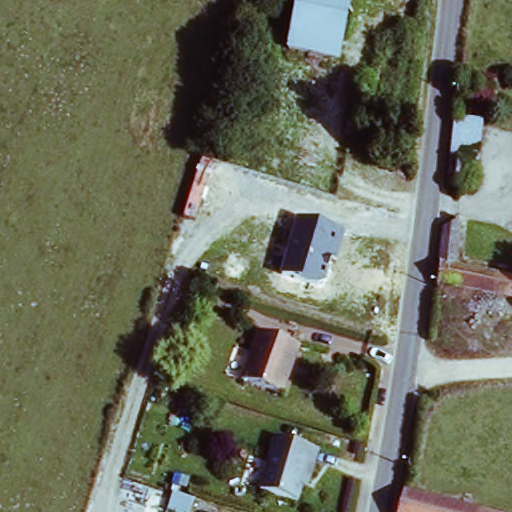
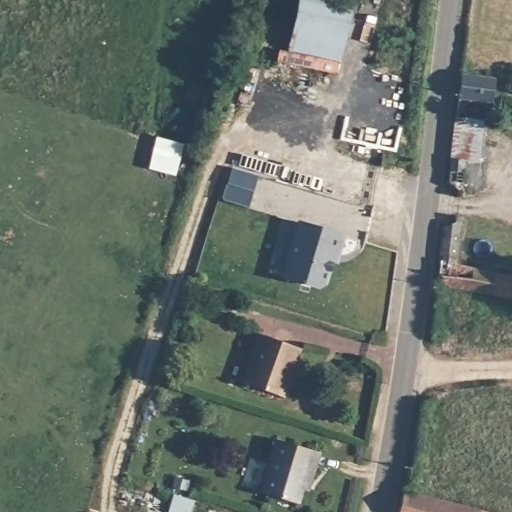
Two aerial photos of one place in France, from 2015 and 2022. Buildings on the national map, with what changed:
unchanged [(347,0),(338,56),(288,50),(295,0),(347,0)]
unchanged [(453,116),(482,121),(479,166),(449,160),(453,116)]
new [(261,176),(251,209),(223,201),(231,168),(261,176)]
unchanged [(464,205),(454,261),(512,277),(512,302),(434,284),(448,202),(464,205)]
unchanged [(344,233),(338,263),(332,262),(324,289),(282,277),(296,222),(344,233)]
unchanged [(244,384),(258,338),(299,350),(286,396),(244,384)]
unchanged [(303,505),(263,494),(278,442),(318,453),(303,505)]
unchanged [(483,512),(403,512),(407,494),(449,504),(483,512)]

